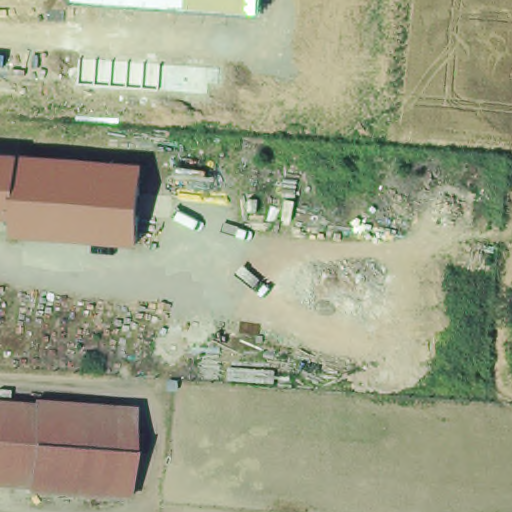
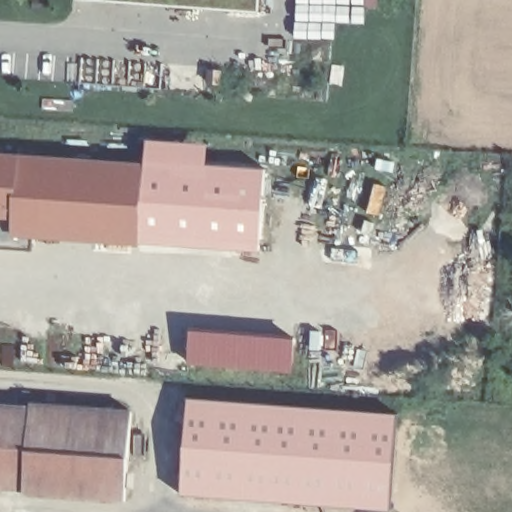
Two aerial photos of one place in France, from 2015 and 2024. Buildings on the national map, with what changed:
unchanged [(80,0),(262,0),(260,15),(80,0)]
new [(208,145),(208,164),(263,169),(260,253),(141,244),(145,140),(208,145)]
unchanged [(138,163),(133,240),(8,232),(9,214),(0,213),(0,153),(138,163)]
new [(290,336),(287,372),(186,366),(190,332),(290,336)]
new [(392,417),(388,512),(177,499),(181,401),(392,417)]
unchanged [(0,473),(0,412),(27,414),(28,410),(125,418),(120,482),(0,473)]
unchanged [(118,508),(18,501),(19,497),(0,495),(0,473),(120,482),(118,508)]

